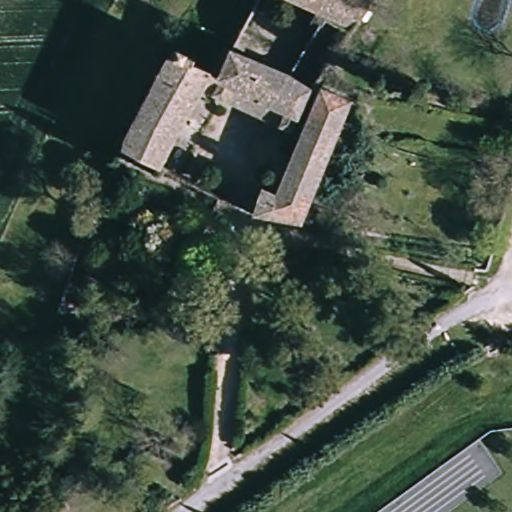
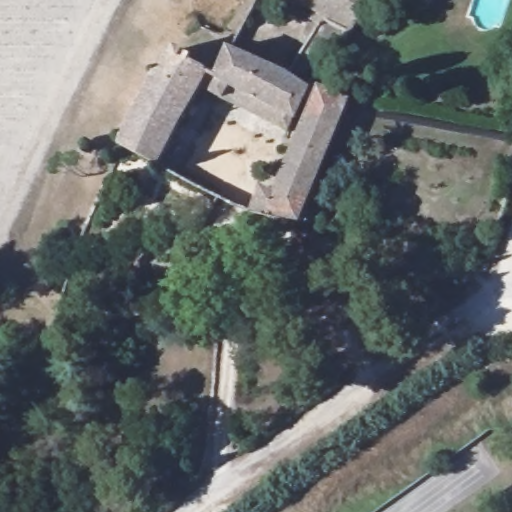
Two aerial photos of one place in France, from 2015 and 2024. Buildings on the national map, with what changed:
unchanged [(346,101),(298,226),(249,214),(259,187),(272,193),(298,134),(220,103),(178,181),(113,148),(114,146),(163,49),(186,59),(184,64),(202,71),(211,48),(219,51),(278,74),(314,18),(276,0),(369,0),(315,86),(346,101)]

